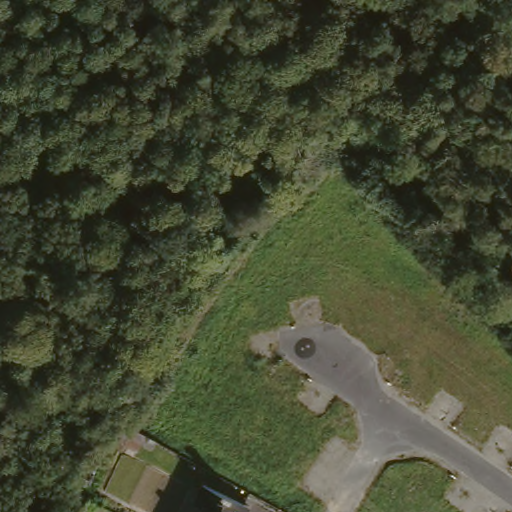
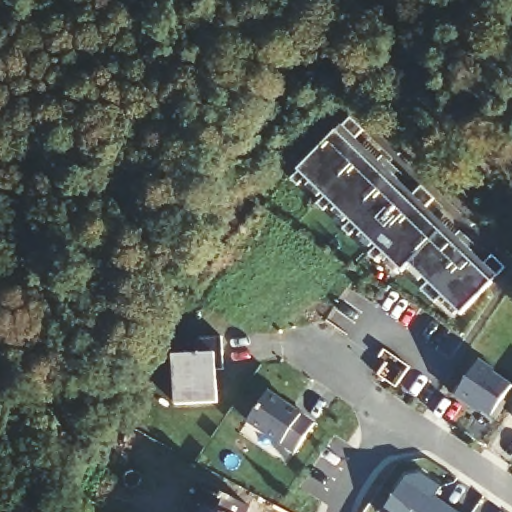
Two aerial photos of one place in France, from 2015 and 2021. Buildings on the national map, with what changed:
new [(407,262),(399,271),(298,170),(340,124),(495,277),(460,315),(407,262)]
new [(220,335),(221,366),(215,363),(216,402),(174,404),(171,353),(192,352),(194,338),(220,335)]
unchanged [(262,390),(309,421),(289,451),(242,419),(262,390)]
unchanged [(404,471),(419,469),(439,483),(428,499),(434,503),(441,499),(460,512),(381,512),(378,510),(404,471)]
unchanged [(210,502),(199,496),(210,475),(255,497),(248,511),(249,512),(205,512),(210,502)]

